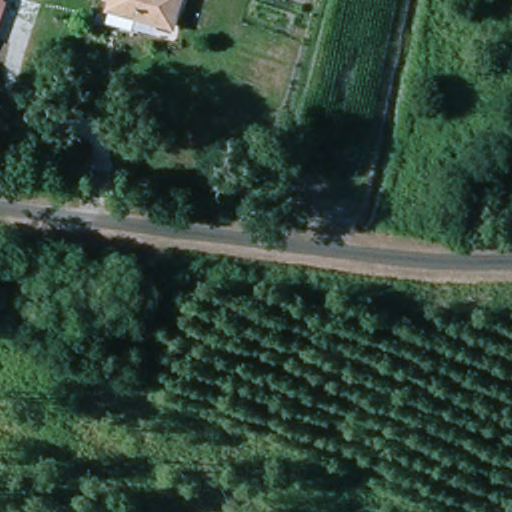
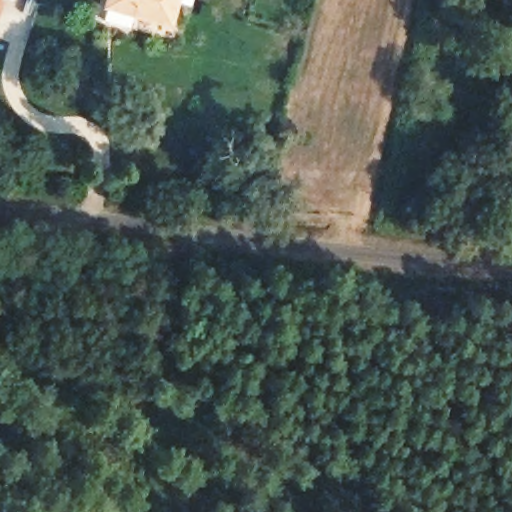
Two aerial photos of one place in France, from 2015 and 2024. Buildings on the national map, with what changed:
unchanged [(23,13),(0,6),(0,0),(28,0),(23,13)]
unchanged [(164,27),(103,10),(105,0),(171,0),(164,27)]

